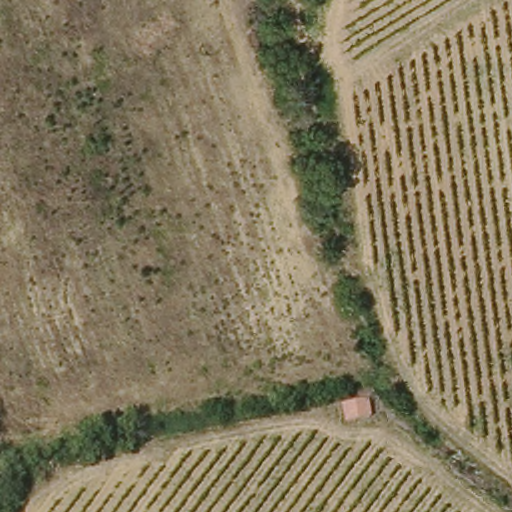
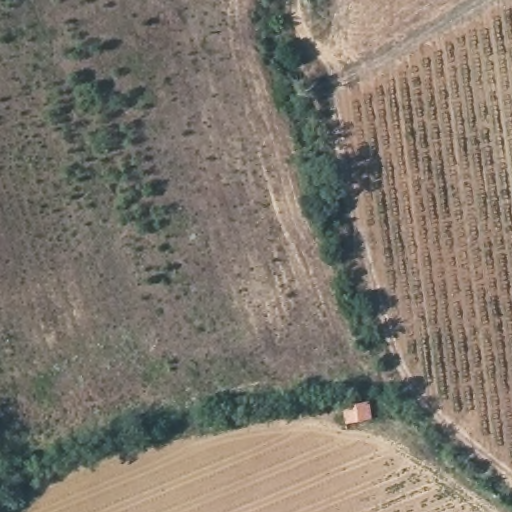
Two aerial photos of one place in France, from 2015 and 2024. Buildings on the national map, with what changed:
unchanged [(374,403),(370,412),(372,421),(348,425),(343,401),(363,397),(374,403)]

